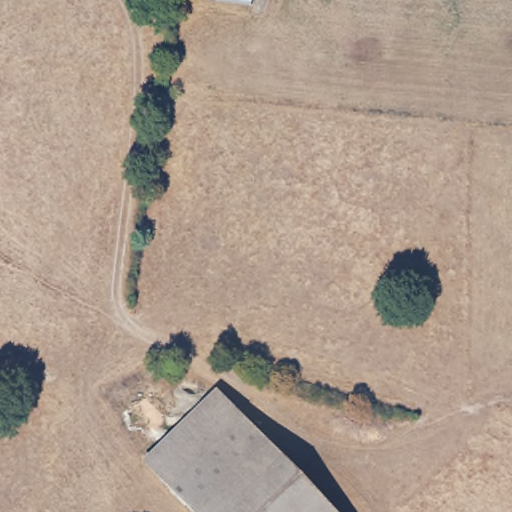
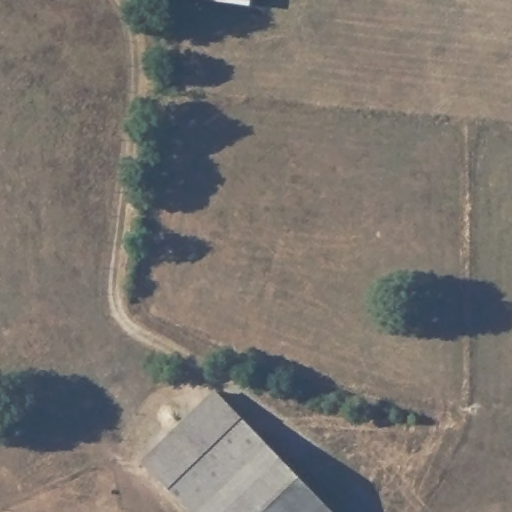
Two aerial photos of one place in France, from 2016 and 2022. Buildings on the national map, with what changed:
unchanged [(228,0),(248,0),(248,3),(228,0)]
unchanged [(335,512),(198,512),(150,462),(221,393),(335,512)]

